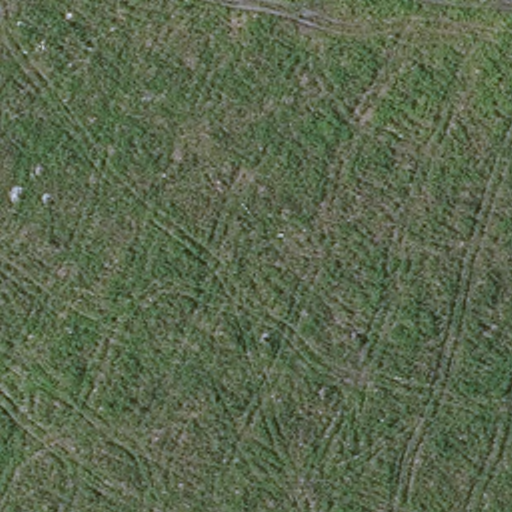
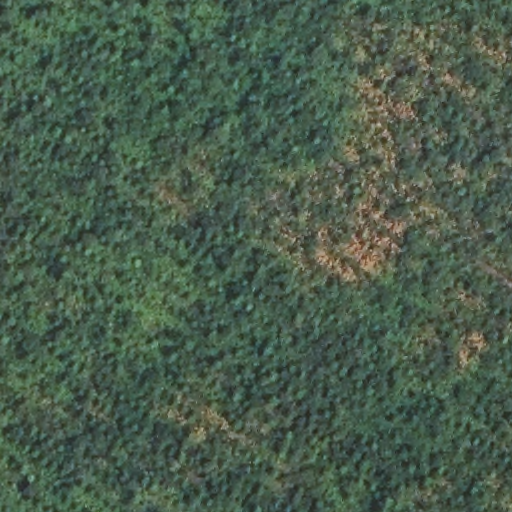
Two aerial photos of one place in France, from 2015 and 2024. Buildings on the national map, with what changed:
[]

